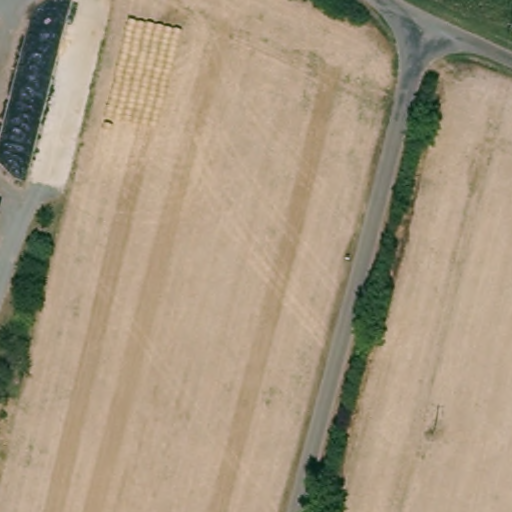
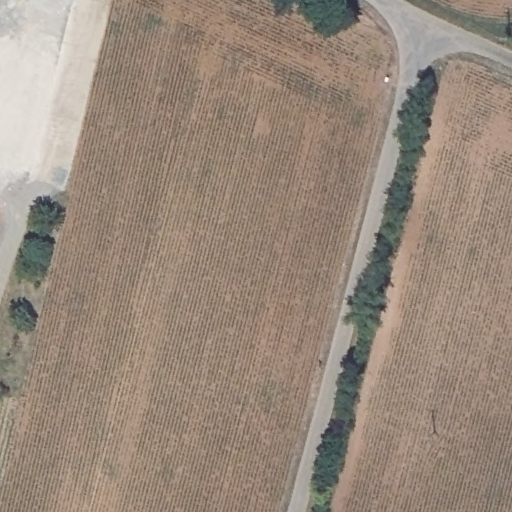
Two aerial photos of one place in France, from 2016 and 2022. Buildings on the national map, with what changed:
unchanged [(0,222),(0,212),(2,213),(0,222)]

